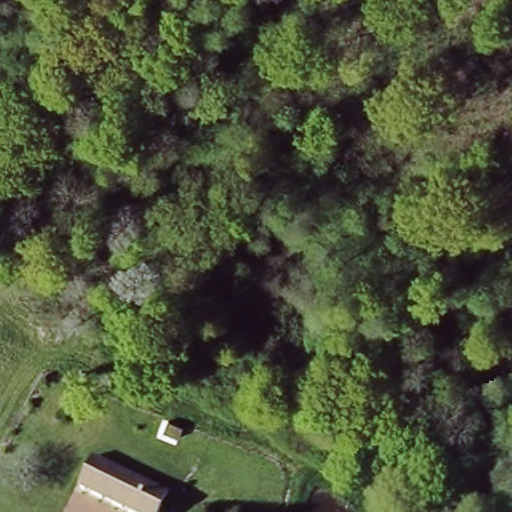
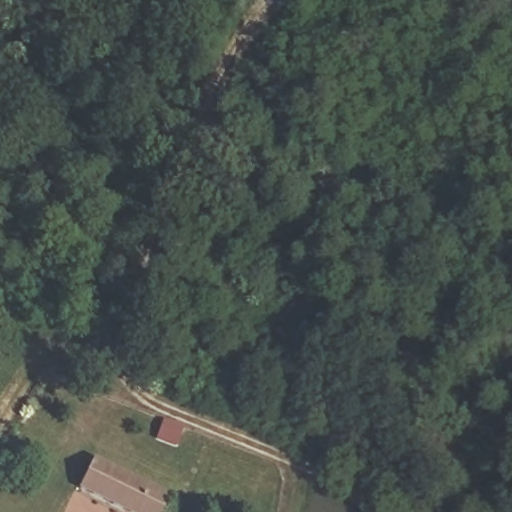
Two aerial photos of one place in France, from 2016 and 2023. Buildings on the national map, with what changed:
unchanged [(178,485),(164,512),(146,512),(79,480),(100,448),(178,485)]

